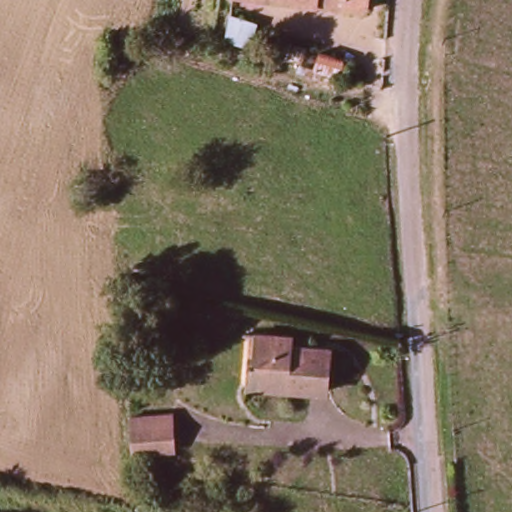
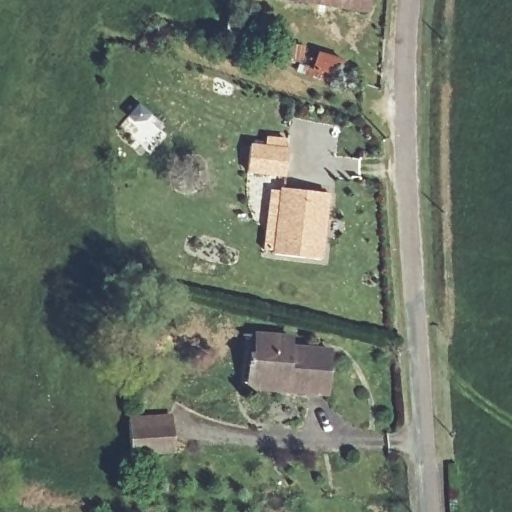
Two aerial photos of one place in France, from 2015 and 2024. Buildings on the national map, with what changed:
unchanged [(261,0),(366,0),(364,15),(261,0)]
unchanged [(312,70),(317,55),(341,62),(336,78),(312,70)]
new [(253,146),(290,150),(287,175),(249,171),(253,146)]
new [(284,189),(329,195),(321,260),(276,255),(284,189)]
unchanged [(246,380),(247,360),(251,360),(252,339),(277,340),(288,340),(288,350),(329,351),(327,393),(270,390),(245,390),(246,380)]
unchanged [(129,451),(128,425),(126,416),(170,414),(170,422),(171,449),(129,451)]

